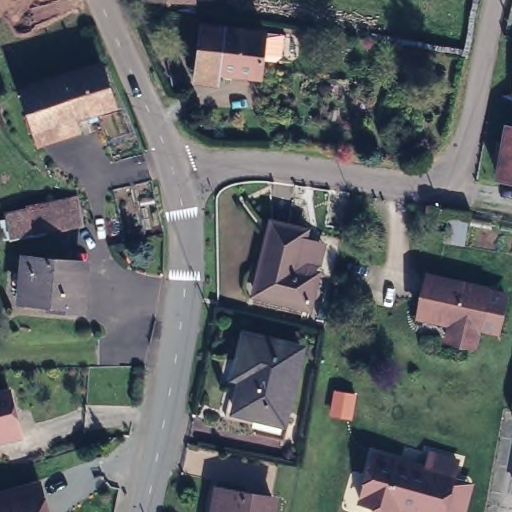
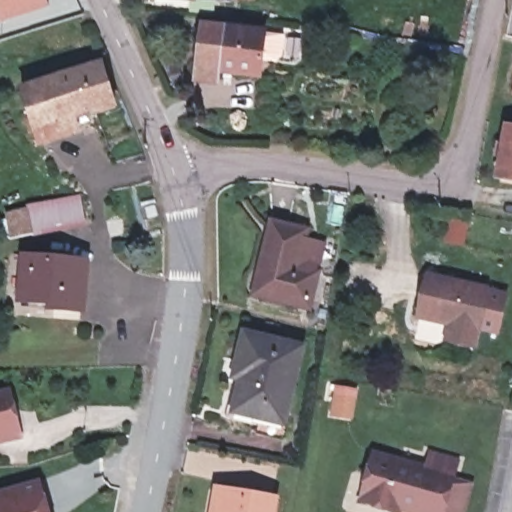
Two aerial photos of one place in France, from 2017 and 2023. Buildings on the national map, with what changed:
new [(0,0),(47,0),(49,6),(0,21),(0,0)]
unchanged [(190,3),(146,0),(190,0),(190,3)]
unchanged [(260,31),(260,32),(279,33),(277,55),(271,60),(257,59),(255,77),(186,70),(190,24),(260,31)]
unchanged [(35,124),(26,126),(24,117),(30,115),(19,84),(97,55),(110,90),(71,105),(77,123),(42,137),(35,124)]
unchanged [(512,121),(512,172),(495,168),(499,148),(493,147),(495,135),(502,135),(505,119),(512,121)]
unchanged [(34,203),(80,196),(85,228),(12,241),(7,213),(34,203)]
unchanged [(254,266),(265,215),(299,224),(290,263),(311,269),(305,303),(256,291),(250,289),(254,266)]
unchanged [(80,261),(80,308),(49,307),(49,301),(20,299),(20,258),(80,261)]
unchanged [(497,289),(490,329),(467,325),(465,344),(440,340),(444,320),(411,313),(419,273),(497,289)]
unchanged [(302,342),(284,425),(227,410),(244,326),(302,342)]
unchanged [(0,389),(10,386),(22,438),(0,445),(0,389)]
unchanged [(404,512),(388,512),(359,506),(370,451),(431,465),(434,450),(460,455),(449,512),(404,512)]
unchanged [(51,512),(0,512),(0,493),(43,480),(51,512)]
unchanged [(263,512),(206,512),(210,481),(265,493),(263,512)]

